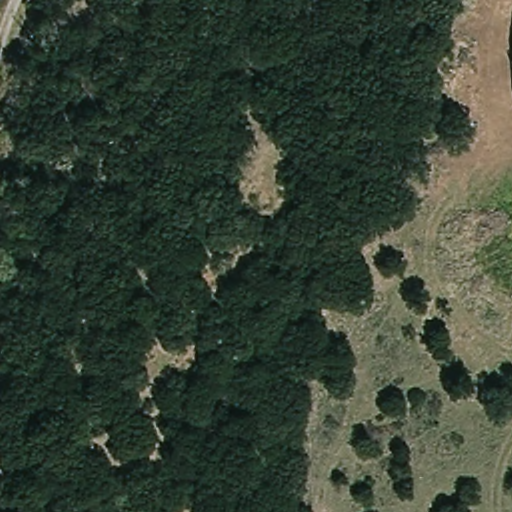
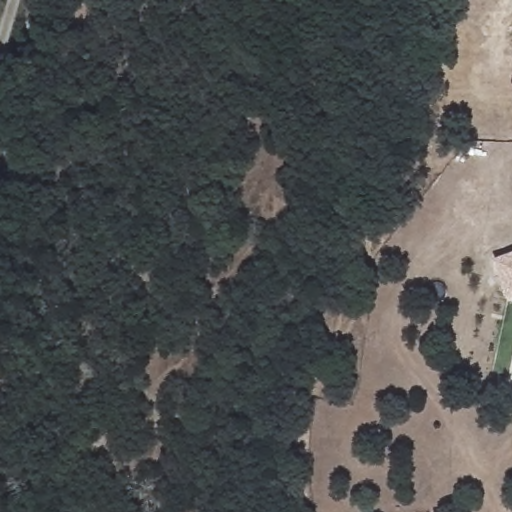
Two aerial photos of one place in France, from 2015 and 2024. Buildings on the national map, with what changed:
new [(512,259),(512,301),(504,304),(490,267),(512,259)]

